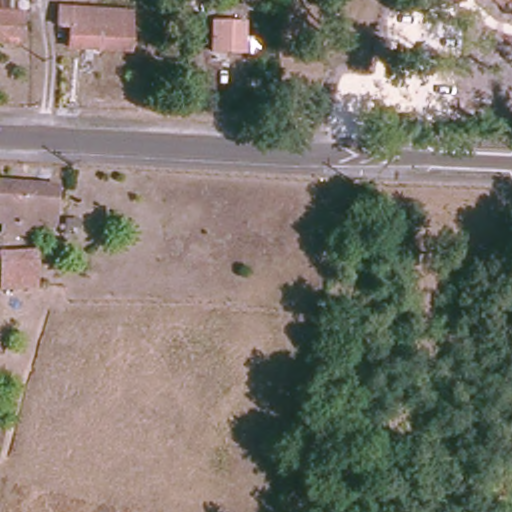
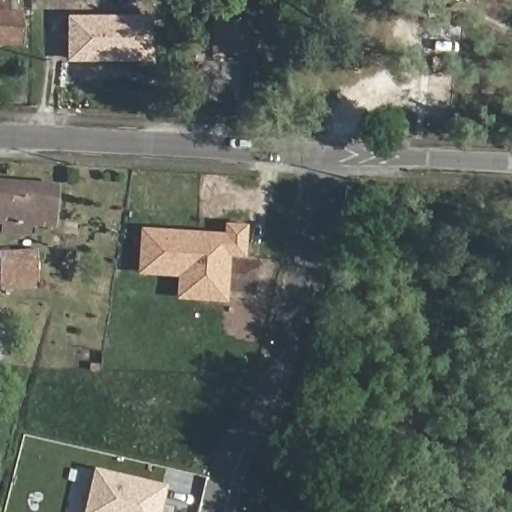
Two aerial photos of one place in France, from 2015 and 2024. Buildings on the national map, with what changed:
unchanged [(0,0),(4,0),(3,12),(21,12),(20,45),(0,45),(0,0)]
unchanged [(131,10),(129,50),(69,48),(69,26),(59,25),(59,8),(131,10)]
unchanged [(214,22),(244,23),(244,51),(213,50),(214,22)]
unchanged [(53,226),(30,224),(29,234),(3,232),(4,222),(0,222),(0,182),(56,186),(53,226)]
new [(137,270),(139,229),(222,233),(223,223),(240,224),(239,250),(224,250),(221,296),(201,295),(176,294),(177,271),(137,270)]
unchanged [(0,251),(36,249),(38,289),(0,291),(0,251)]
new [(161,483),(157,501),(174,504),(172,512),(79,512),(89,467),(161,483)]

